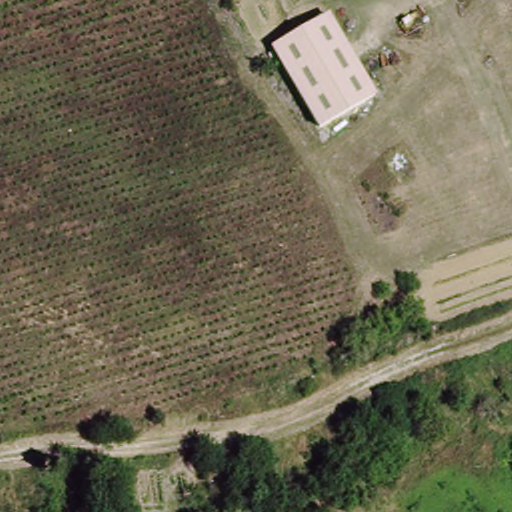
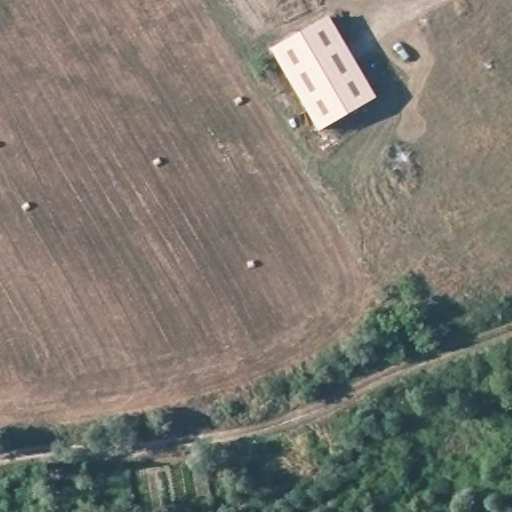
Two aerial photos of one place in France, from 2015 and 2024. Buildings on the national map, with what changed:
unchanged [(273,54),(332,19),(380,99),(320,134),(273,54)]

